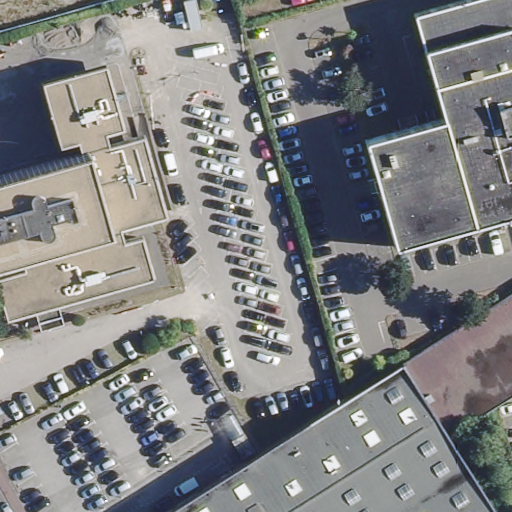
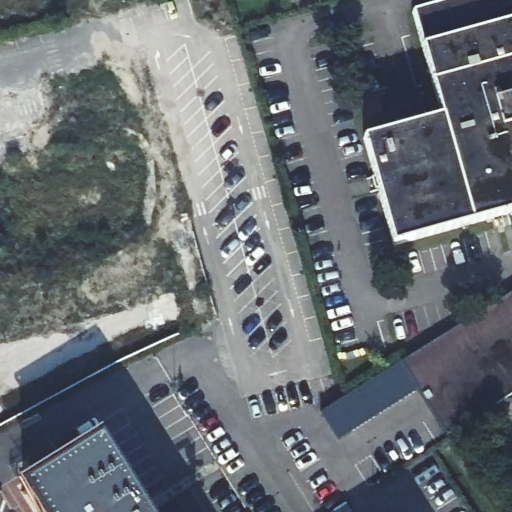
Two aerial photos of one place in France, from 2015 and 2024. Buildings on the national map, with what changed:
unchanged [(415,15),(468,0),(512,0),(512,209),(392,245),(362,143),(443,119),(415,15)]
demolished [(0,263),(0,175),(70,157),(65,140),(52,144),(38,89),(91,75),(106,130),(94,134),(98,152),(125,145),(145,215),(107,225),(113,246),(135,240),(145,276),(8,312),(0,284),(0,280),(21,274),(17,259),(0,263)]
unchanged [(512,400),(452,437),(405,365),(512,294),(512,400)]
demolished [(275,440),(342,398),(403,360),(499,512),(318,512),(275,440)]
new [(104,433),(153,512),(42,512),(24,483),(104,433)]
demolished [(318,512),(161,512),(187,496),(271,443),(275,440),(318,512)]

